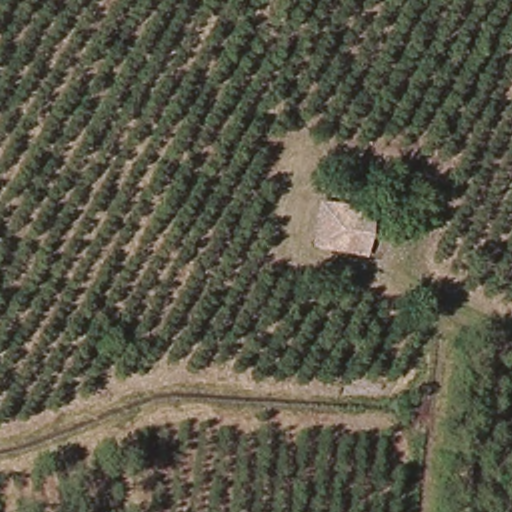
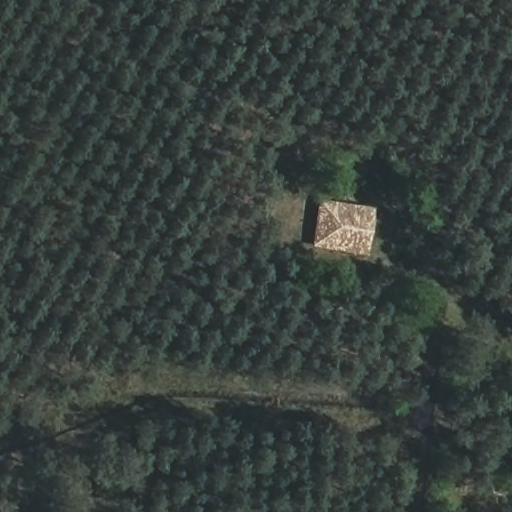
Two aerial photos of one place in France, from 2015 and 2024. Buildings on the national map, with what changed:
unchanged [(366,215),(360,252),(315,243),(323,207),(366,215)]

